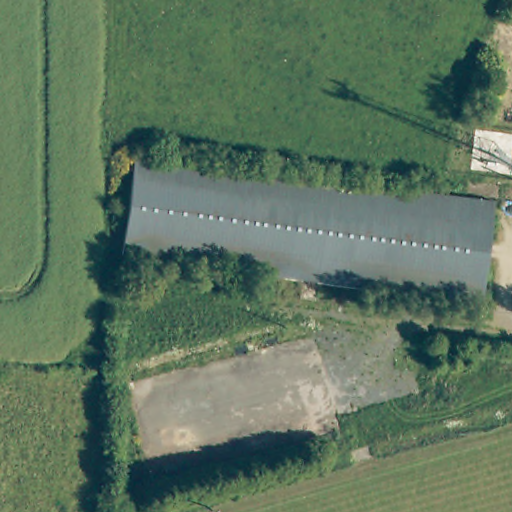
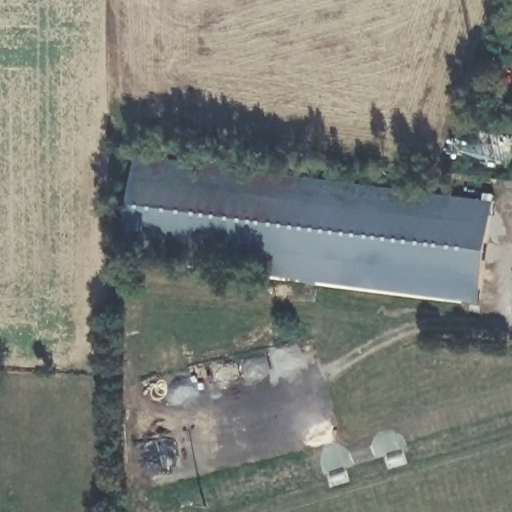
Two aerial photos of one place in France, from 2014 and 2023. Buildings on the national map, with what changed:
unchanged [(496,206),(482,307),(126,260),(137,159),(496,206)]

